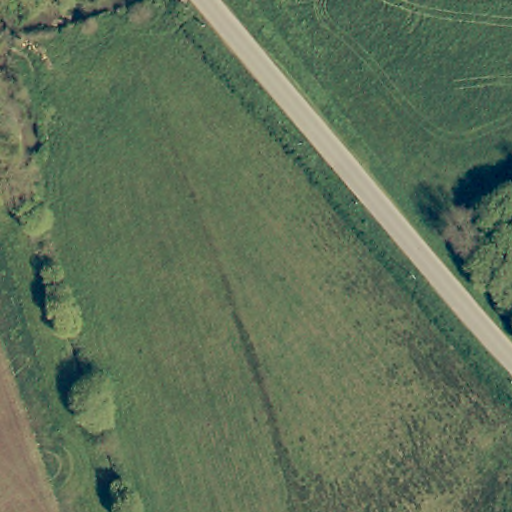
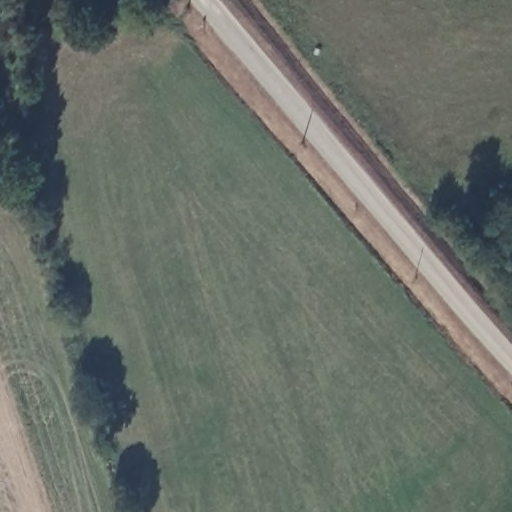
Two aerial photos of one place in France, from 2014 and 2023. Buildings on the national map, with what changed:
[]

